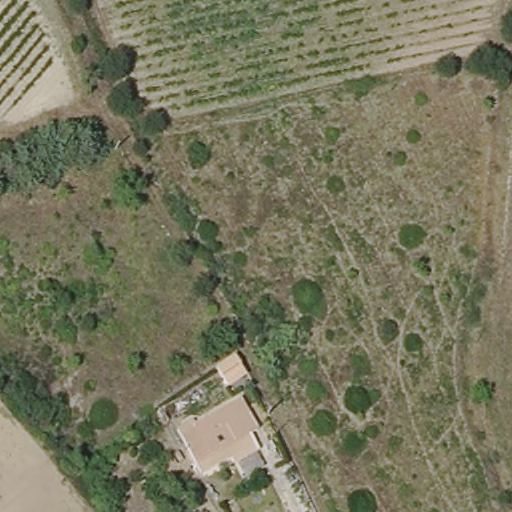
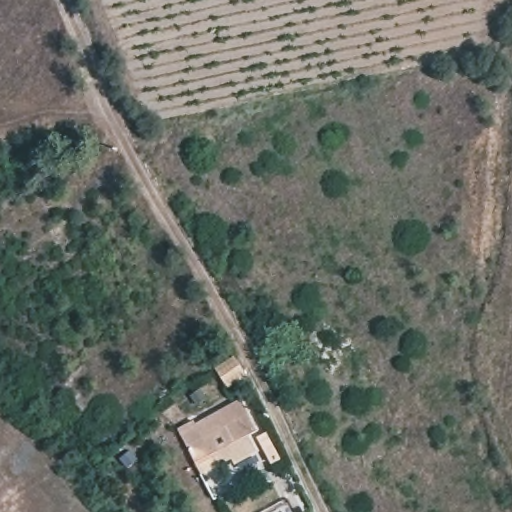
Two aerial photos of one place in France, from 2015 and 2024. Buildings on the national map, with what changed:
unchanged [(224,380),(216,369),(234,357),(242,368),(224,380)]
unchanged [(261,454),(237,467),(233,458),(202,475),(177,429),(194,420),(195,423),(241,398),(259,430),(251,435),(261,454)]

